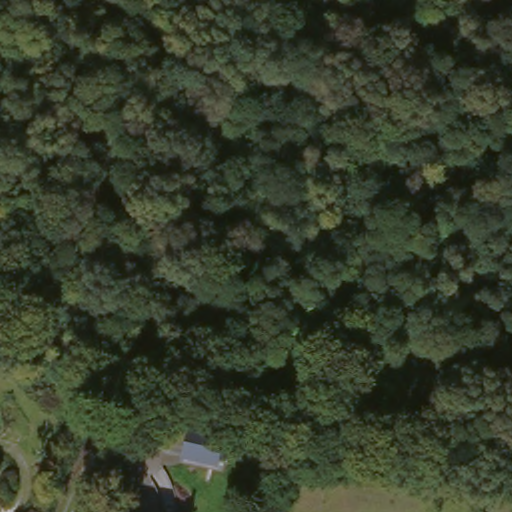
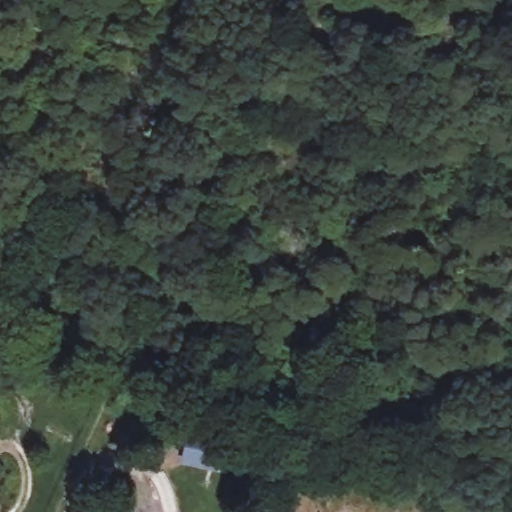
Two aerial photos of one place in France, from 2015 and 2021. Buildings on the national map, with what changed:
unchanged [(208,457),(200,486),(166,477),(174,448),(208,457)]

